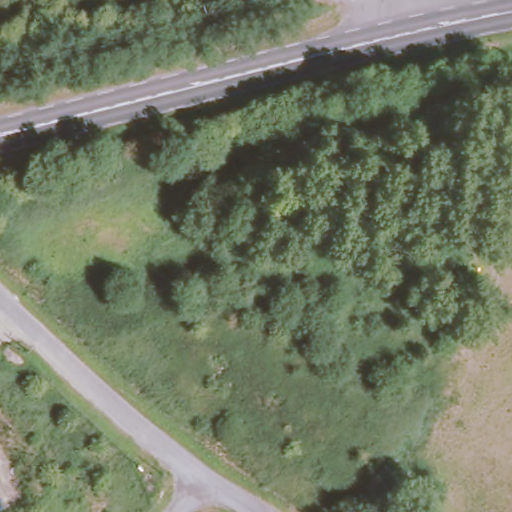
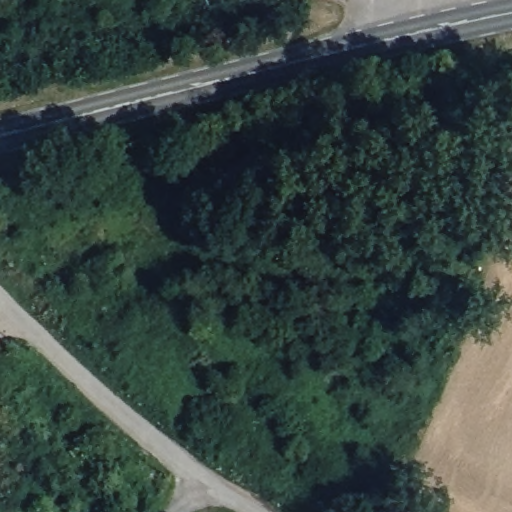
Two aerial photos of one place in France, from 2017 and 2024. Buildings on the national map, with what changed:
unchanged [(91,42),(90,37),(91,33),(94,30),(99,29),(102,31),(105,36),(105,40),(102,44),(97,45),(94,44),(91,42)]

